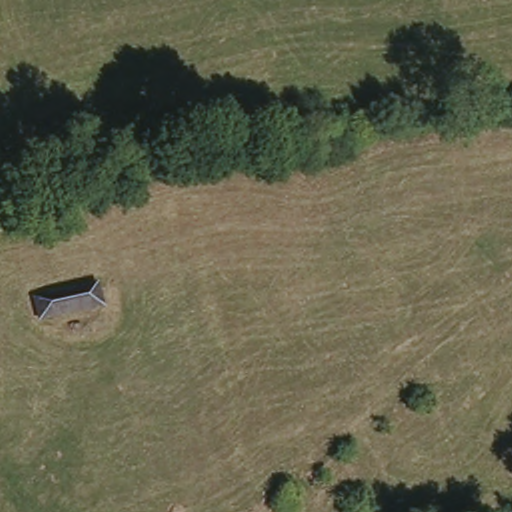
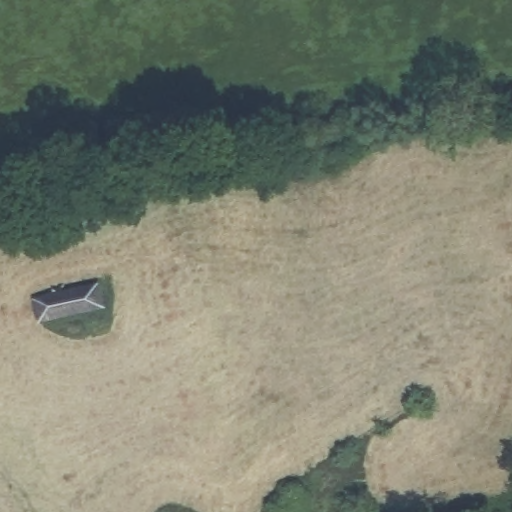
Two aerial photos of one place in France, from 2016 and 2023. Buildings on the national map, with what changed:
unchanged [(96,279),(104,305),(45,322),(37,296),(96,279)]

